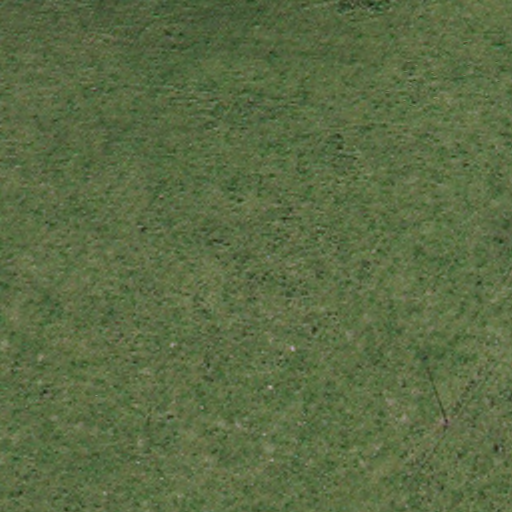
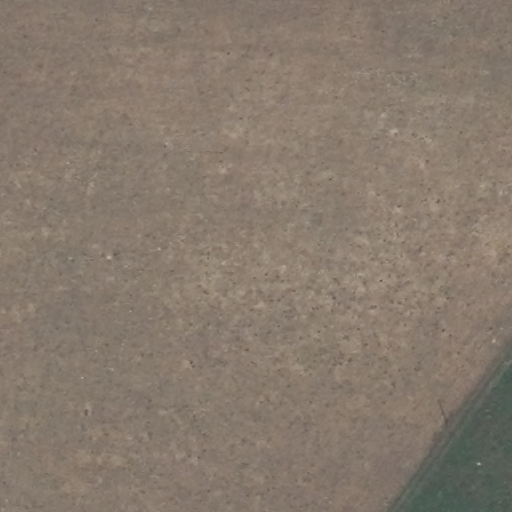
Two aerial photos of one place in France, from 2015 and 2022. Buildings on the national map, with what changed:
[]

